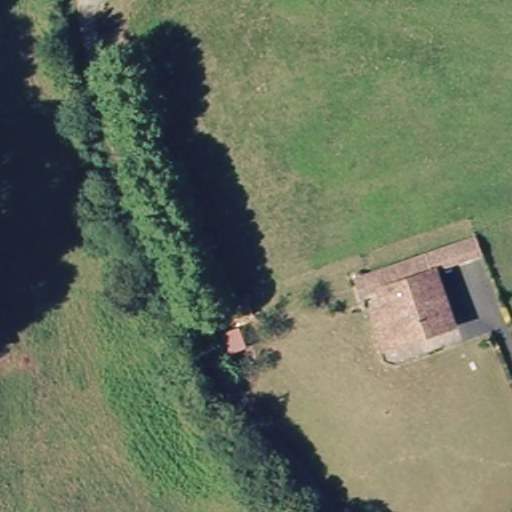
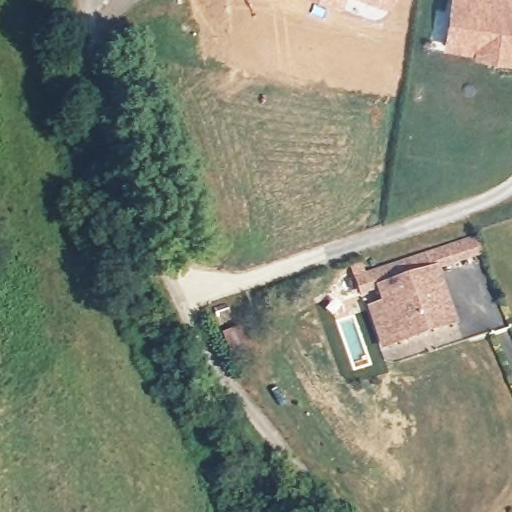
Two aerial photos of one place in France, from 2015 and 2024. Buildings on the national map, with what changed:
new [(339,7),(319,0),(342,0),(339,7)]
new [(389,9),(366,0),(393,0),(389,9)]
new [(470,57),(471,53),(441,49),(450,0),(512,0),(512,65),(470,57)]
unchanged [(379,306),(374,292),(352,300),(347,285),(371,277),(383,273),(389,271),(429,257),(476,242),(482,256),(443,271),(437,273),(434,275),(432,271),(433,273),(451,328),(394,347),(393,343),(380,347),(368,310),(379,306)]

